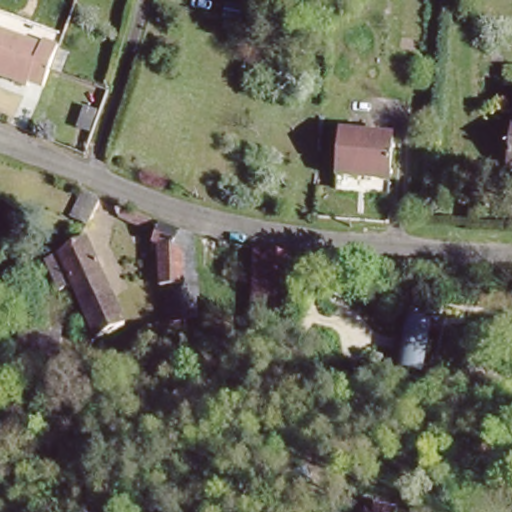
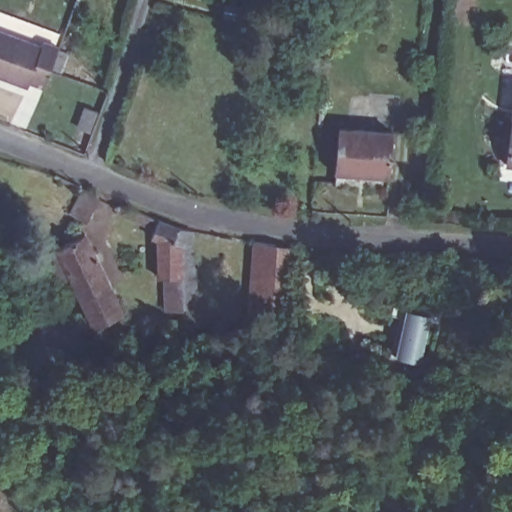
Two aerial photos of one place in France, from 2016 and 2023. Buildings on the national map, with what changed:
unchanged [(38,45),(40,40),(55,46),(46,67),(40,85),(27,80),(25,85),(0,75),(0,28),(9,32),(38,45)]
unchanged [(92,100),(107,105),(100,122),(85,116),(92,100)]
unchanged [(512,171),(510,170),(512,127),(512,171)]
unchanged [(343,131),(390,135),(393,135),(390,180),(385,179),(338,175),(338,171),(341,131),(343,131)]
unchanged [(153,216),(173,225),(172,238),(187,244),(178,310),(157,307),(165,241),(151,235),(153,216)]
unchanged [(187,244),(172,238),(173,225),(200,230),(190,312),(178,310),(187,244)]
unchanged [(84,235),(122,316),(90,330),(53,249),(84,235)]
unchanged [(260,241),(297,248),(283,333),(246,327),(260,241)]
unchanged [(404,315),(415,316),(427,318),(422,366),(410,365),(400,364),(404,315)]

